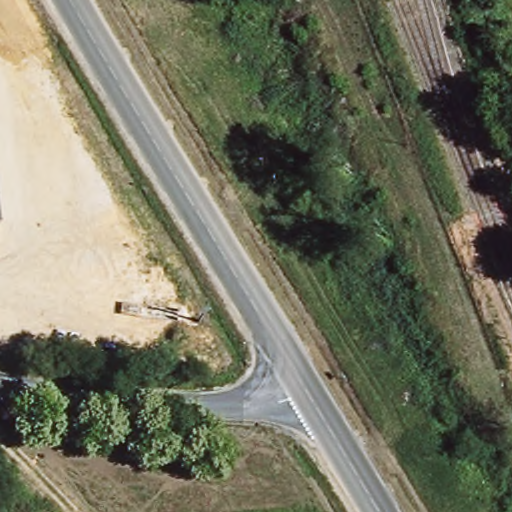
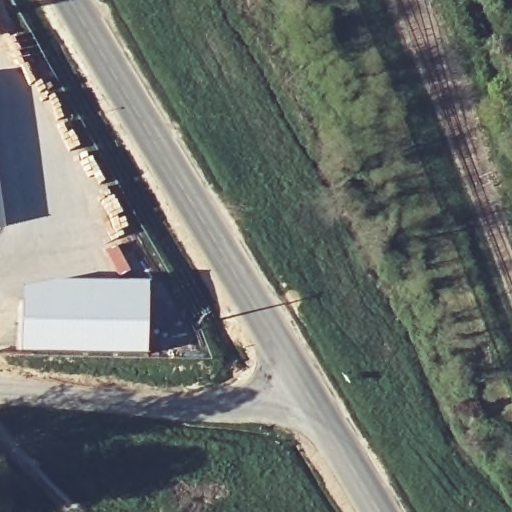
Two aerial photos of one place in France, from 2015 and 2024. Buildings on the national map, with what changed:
unchanged [(0,227),(0,210),(2,227),(0,227)]
new [(147,357),(21,354),(22,289),(56,282),(147,285),(147,357)]

